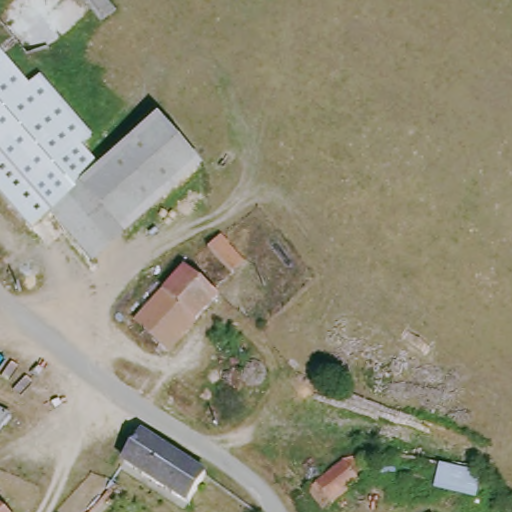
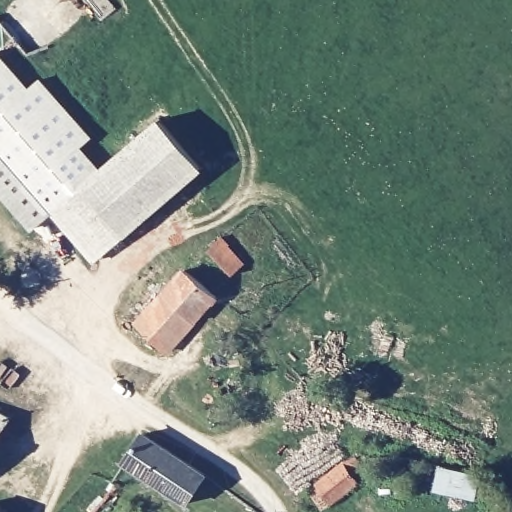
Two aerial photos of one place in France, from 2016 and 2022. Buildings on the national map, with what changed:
unchanged [(30,189),(17,199),(0,179),(0,53),(28,89),(41,78),(91,138),(78,149),(96,172),(48,212),(30,189)]
unchanged [(96,172),(158,120),(198,169),(88,260),(48,212),(96,172)]
unchanged [(238,260),(230,273),(208,253),(221,238),(238,260)]
unchanged [(184,268),(215,295),(195,318),(163,289),(184,268)]
unchanged [(165,352),(133,322),(163,289),(195,318),(165,352)]
unchanged [(8,411),(0,424),(0,407),(8,411)]
unchanged [(180,500),(125,462),(117,456),(130,438),(135,431),(148,439),(198,474),(180,500)]
unchanged [(357,487),(330,504),(319,491),(347,472),(357,487)]

